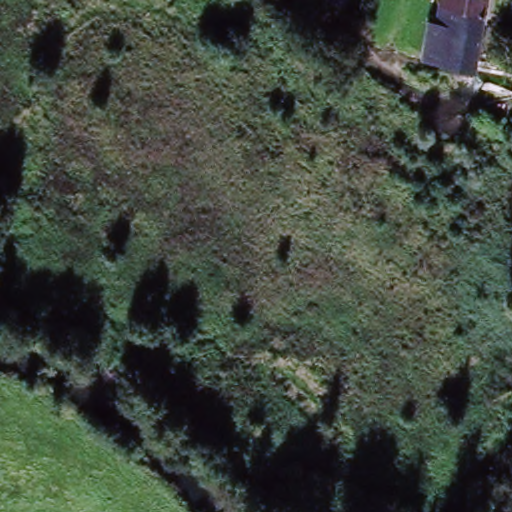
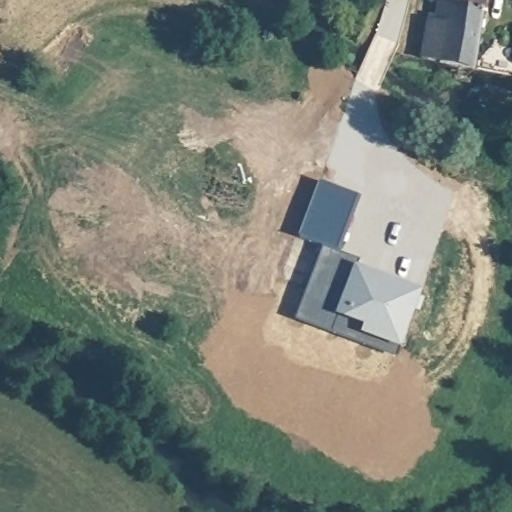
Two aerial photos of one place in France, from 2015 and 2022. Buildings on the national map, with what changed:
unchanged [(437,70),(439,58),(423,56),(429,15),(439,16),(441,0),(486,0),(479,50),(504,54),(504,68),(473,62),(470,75),(437,70)]
unchanged [(497,90),(512,95),(512,119),(486,110),(491,90),(497,90)]
new [(323,248),(299,239),(321,183),(357,197),(336,252),(359,261),(353,278),(378,288),(382,276),(420,291),(409,320),(412,320),(402,349),(379,340),(376,347),(333,331),(297,318),(313,275),(323,248)]

